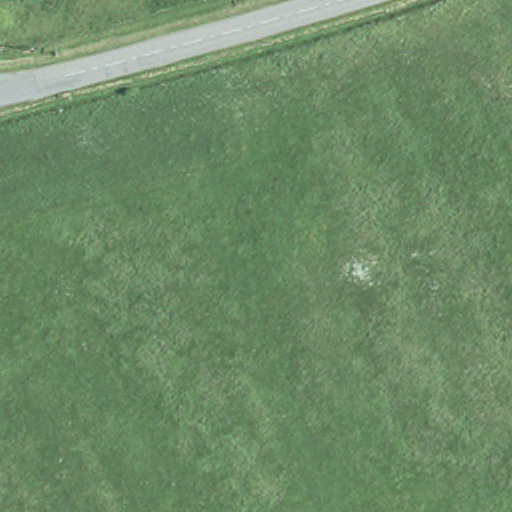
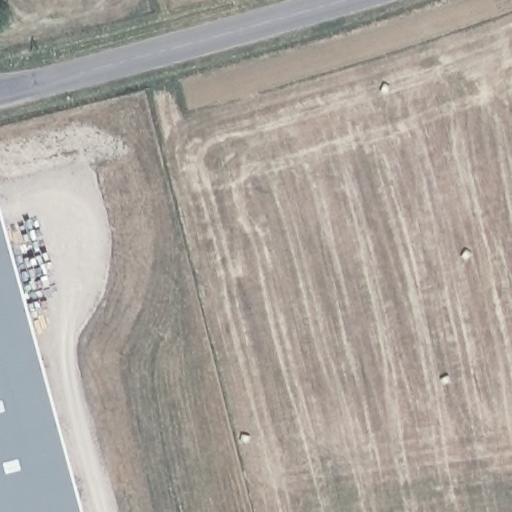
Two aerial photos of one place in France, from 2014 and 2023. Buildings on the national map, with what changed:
new [(0,211),(82,512),(0,512),(0,211)]

